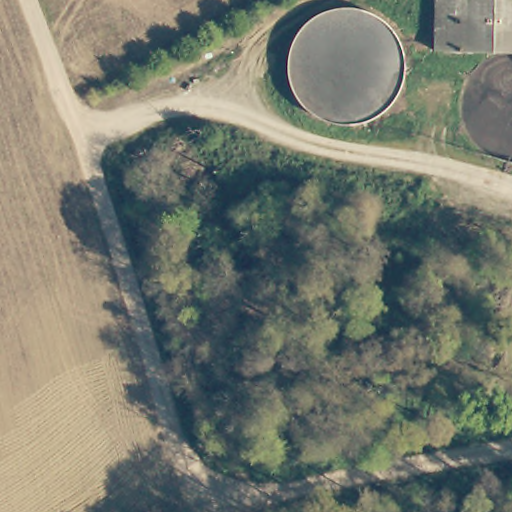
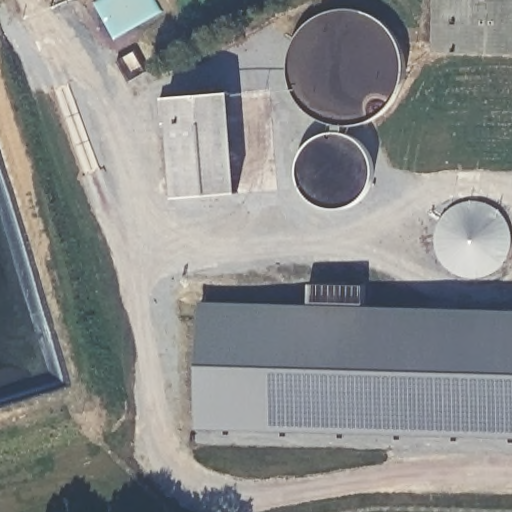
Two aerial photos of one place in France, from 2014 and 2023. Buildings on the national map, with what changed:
unchanged [(433,52),(434,0),(512,0),(512,56),(433,52)]
new [(238,193),(175,198),(169,97),(230,92),(238,193)]
new [(195,429),(199,303),(308,304),(308,285),(362,286),(362,305),(512,309),(512,437),(195,429)]

